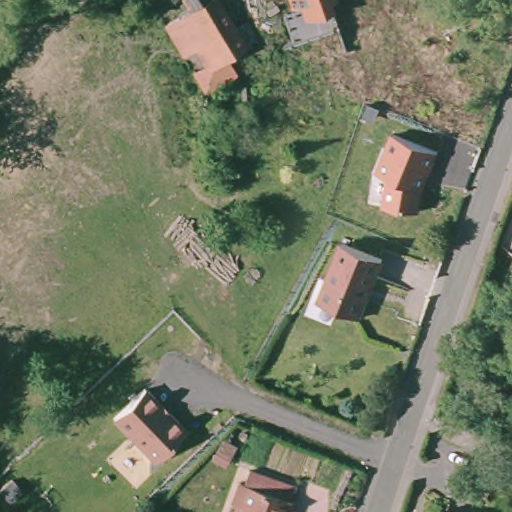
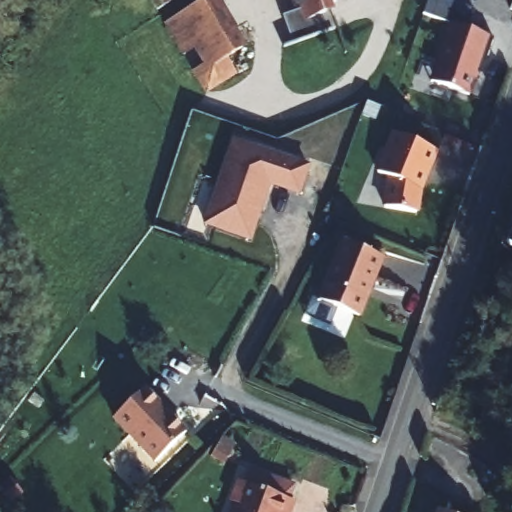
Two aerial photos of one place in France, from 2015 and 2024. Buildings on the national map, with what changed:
unchanged [(155,9),(151,0),(172,0),(155,9)]
unchanged [(247,39),(224,55),(234,76),(205,94),(192,74),(160,24),(197,0),(220,0),(247,39)]
new [(338,7),(332,10),(338,27),(293,42),(284,15),(294,12),(290,0),(336,0),(338,7)]
demolished [(342,11),(302,25),(293,0),(337,0),(342,11)]
new [(430,81),(449,21),(491,36),(472,94),(430,81)]
unchanged [(440,150),(427,186),(424,210),(382,202),(386,175),(376,172),(391,131),(440,150)]
new [(244,239),(202,225),(232,138),(310,165),(300,196),(270,186),(248,235),(244,239)]
unchanged [(384,259),(360,321),(319,306),(340,245),(384,259)]
unchanged [(189,431),(157,463),(115,419),(147,386),(189,431)]
unchanged [(290,497),(285,512),(231,512),(242,482),(249,466),(295,483),(290,497)]
unchanged [(457,512),(439,512),(441,506),(457,512)]

